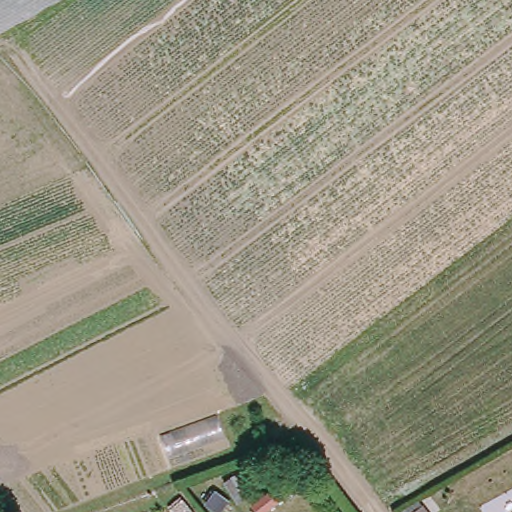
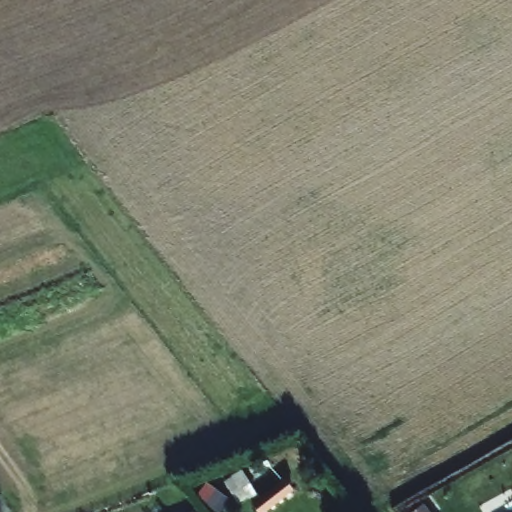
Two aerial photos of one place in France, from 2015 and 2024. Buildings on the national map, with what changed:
unchanged [(263,512),(257,512),(252,505),(283,481),(291,490),(263,512)]
unchanged [(322,512),(305,491),(315,483),(337,512),(322,512)]
unchanged [(432,512),(425,512),(430,508),(432,512)]

